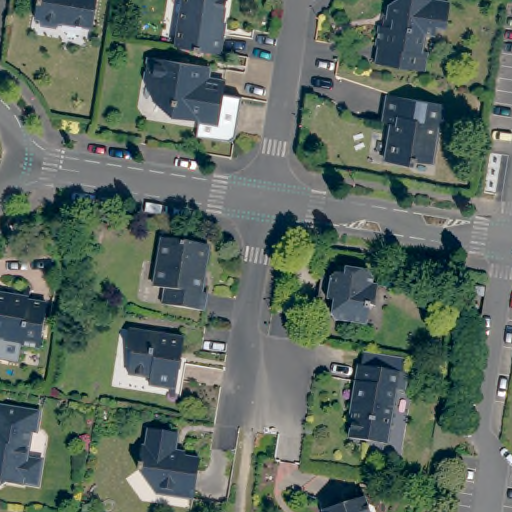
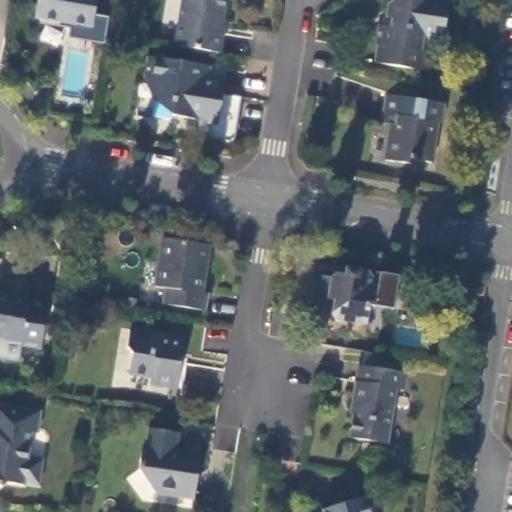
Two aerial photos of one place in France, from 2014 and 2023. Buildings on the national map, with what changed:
unchanged [(93,28),(62,22),(57,27),(41,24),(39,19),(35,18),(39,0),(98,0),(93,28)]
unchanged [(176,46),(183,0),(226,0),(221,32),(223,33),(220,53),(176,46)]
unchanged [(393,0),(435,0),(449,2),(445,23),(436,22),(434,34),(424,33),(421,50),(428,51),(425,71),(375,63),(378,45),(376,45),(379,26),(383,25),(384,18),(387,17),(389,3),(393,0)]
unchanged [(238,97),(231,138),(225,141),(192,136),(195,120),(169,114),(169,103),(150,99),(153,79),(141,77),(143,56),(204,65),(223,69),(221,82),(219,94),(238,97)]
unchanged [(432,162),(411,160),(411,165),(385,160),(388,135),(393,134),(394,125),(381,122),(386,95),(441,103),(432,162)]
unchanged [(210,245),(207,267),(204,267),(203,274),(205,274),(202,292),(209,293),(206,310),(163,303),(165,288),(155,286),(163,238),(210,245)]
unchanged [(369,271),(375,278),(375,283),(378,284),(375,305),(371,305),(367,324),(337,320),(333,315),(335,299),(329,299),(332,277),(338,273),(346,274),(347,267),(369,271)]
unchanged [(41,349),(20,346),(20,344),(7,343),(2,338),(0,338),(0,294),(13,296),(14,300),(47,305),(41,349)]
unchanged [(185,337),(181,360),(180,359),(178,370),(180,369),(177,388),(151,385),(151,377),(128,374),(132,354),(128,346),(131,329),(185,337)]
unchanged [(406,374),(404,391),(395,389),(390,418),(386,444),(348,438),(353,405),(351,405),(357,366),(406,374)]
unchanged [(42,415),(39,435),(34,435),(29,461),(43,464),(39,489),(24,487),(22,490),(6,486),(1,491),(0,491),(0,409),(42,415)]
unchanged [(157,488),(152,481),(139,464),(141,444),(146,444),(150,423),(179,427),(175,449),(201,453),(195,487),(193,495),(157,488)]
unchanged [(368,512),(333,512),(365,501),(368,512)]

